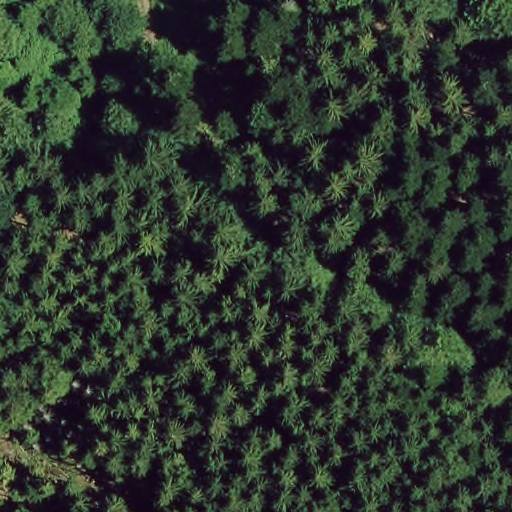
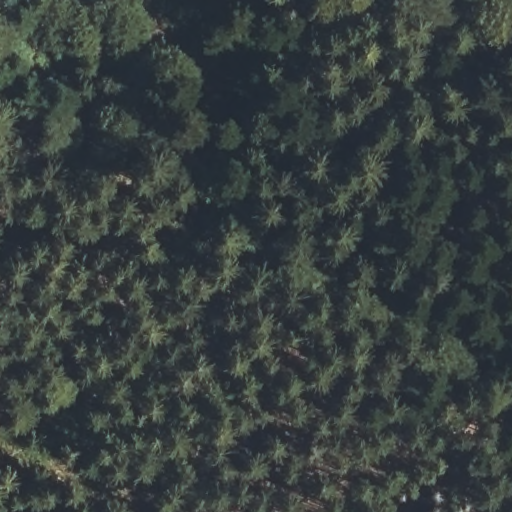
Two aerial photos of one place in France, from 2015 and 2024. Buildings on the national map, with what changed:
unchanged [(110,154),(92,158),(83,119),(101,116),(110,154)]

